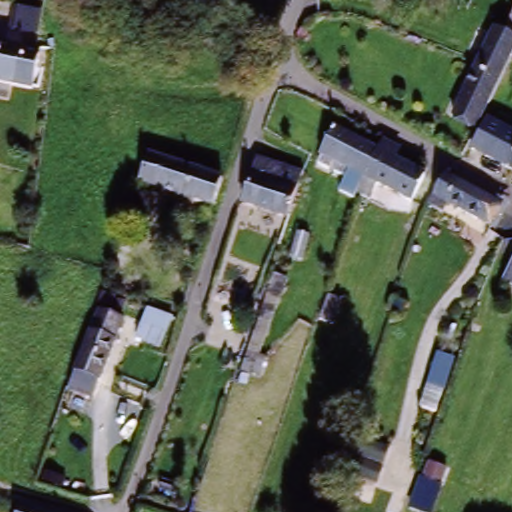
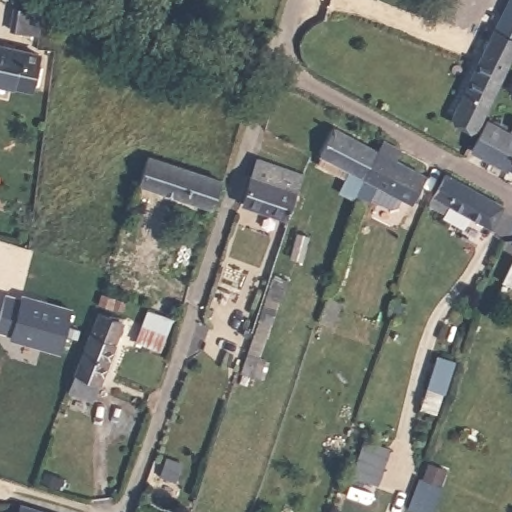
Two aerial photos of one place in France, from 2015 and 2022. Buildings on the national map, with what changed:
unchanged [(112,6),(96,0),(115,0),(112,6)]
unchanged [(33,31),(8,25),(14,2),(39,9),(33,31)]
unchanged [(512,33),(506,30),(512,17),(512,33)]
unchanged [(34,90),(0,81),(0,42),(38,54),(34,90)]
unchanged [(474,150),(467,146),(476,129),(452,114),(485,42),(512,56),(485,110),(512,124),(512,171),(505,167),(474,150)]
unchanged [(346,191),(350,177),(331,169),(325,166),(327,149),(339,127),(349,131),(385,147),(370,186),(364,200),(346,191)]
unchanged [(402,169),(423,180),(412,205),(370,186),(385,147),(406,159),(402,169)]
unchanged [(212,206),(145,181),(154,155),(222,180),(212,206)]
unchanged [(285,214),(245,201),(258,159),(302,170),(285,214)]
unchanged [(453,187),(508,216),(500,233),(442,206),(453,187)]
unchanged [(321,287),(337,294),(325,318),(310,311),(321,287)]
new [(7,295),(22,300),(23,296),(73,310),(61,352),(11,338),(12,335),(0,331),(0,318),(7,295)]
unchanged [(70,386),(75,372),(98,305),(124,313),(101,381),(97,394),(70,386)]
unchanged [(167,327),(162,345),(138,338),(142,321),(167,327)]
unchanged [(462,358),(440,420),(417,410),(440,350),(462,358)]
unchanged [(20,512),(23,501),(56,512),(20,512)]

